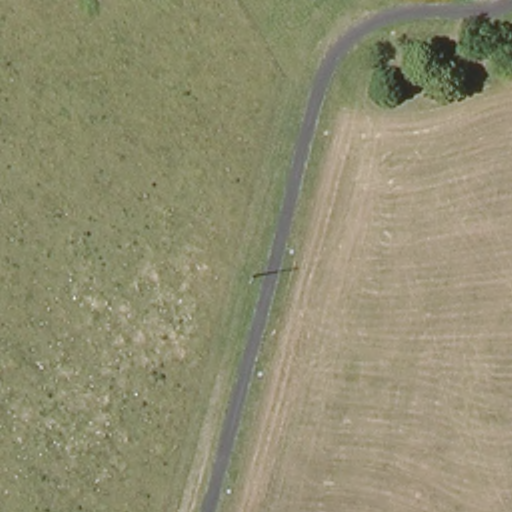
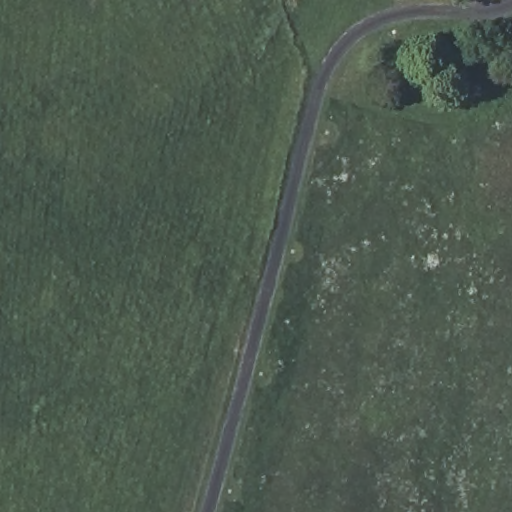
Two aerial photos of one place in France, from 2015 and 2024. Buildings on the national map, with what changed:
[]

